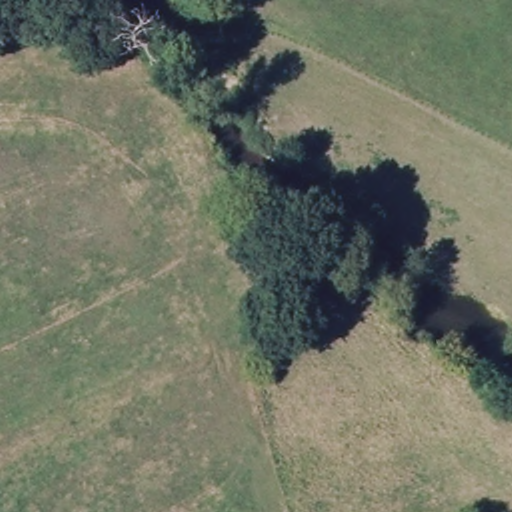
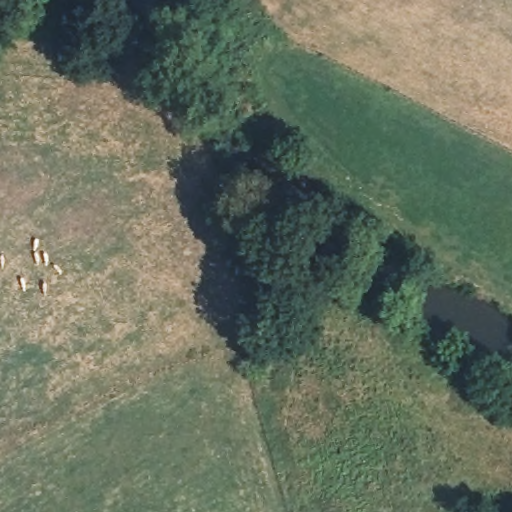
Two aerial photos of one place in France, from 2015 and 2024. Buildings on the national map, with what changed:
[]

